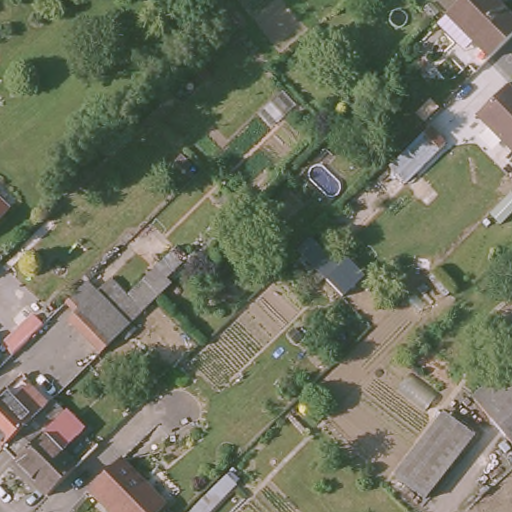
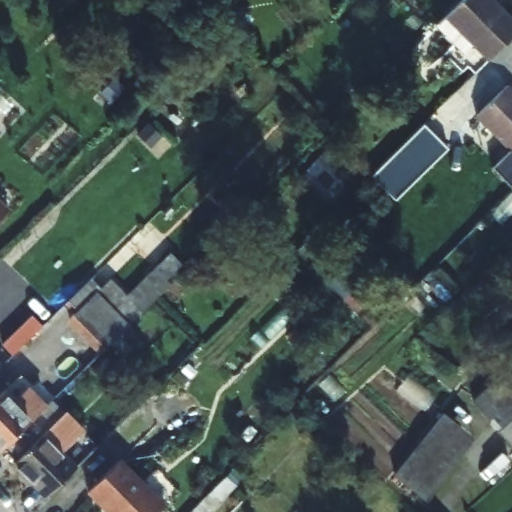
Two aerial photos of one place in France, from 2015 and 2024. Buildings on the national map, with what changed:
unchanged [(512,40),(489,63),(447,20),(467,0),(488,0),(512,25),(512,40)]
unchanged [(509,91),(512,94),(512,156),(478,123),(509,91)]
unchanged [(433,126),(448,143),(409,180),(393,165),(433,126)]
unchanged [(3,213),(0,215),(0,209),(3,213)]
unchanged [(163,255),(180,269),(136,315),(119,297),(163,255)]
unchanged [(136,315),(138,317),(98,356),(66,322),(56,312),(96,273),(106,283),(119,297),(136,315)]
unchanged [(512,372),(512,441),(484,397),(512,372)]
unchanged [(13,394),(28,380),(45,398),(55,409),(15,449),(12,452),(0,439),(0,407),(13,394)]
unchanged [(24,463),(27,460),(15,449),(55,409),(63,402),(75,415),(55,436),(86,469),(63,492),(58,498),(46,486),(24,463)]
unchanged [(424,505),(394,481),(446,421),(474,445),(424,505)]
unchanged [(161,512),(108,512),(88,492),(120,460),(166,508),(161,512)]
unchanged [(227,473),(236,483),(205,512),(187,512),(227,473)]

